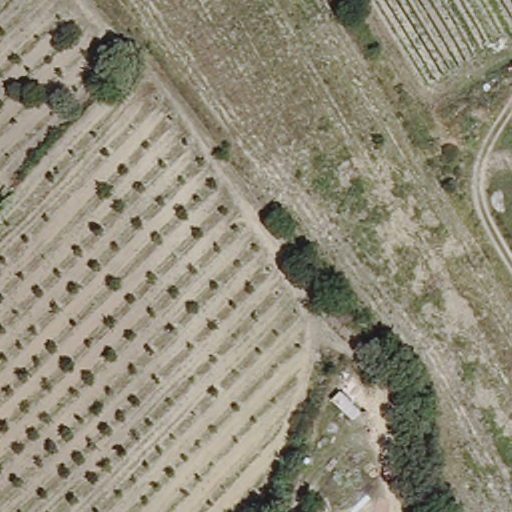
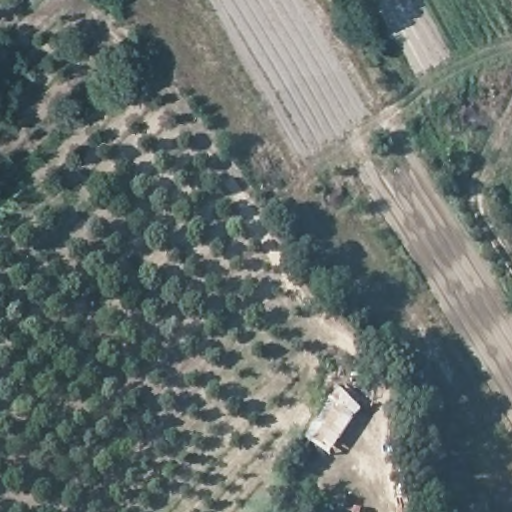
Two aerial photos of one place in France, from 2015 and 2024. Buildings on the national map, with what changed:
new [(329,458),(303,440),(339,393),(363,412),(329,458)]

